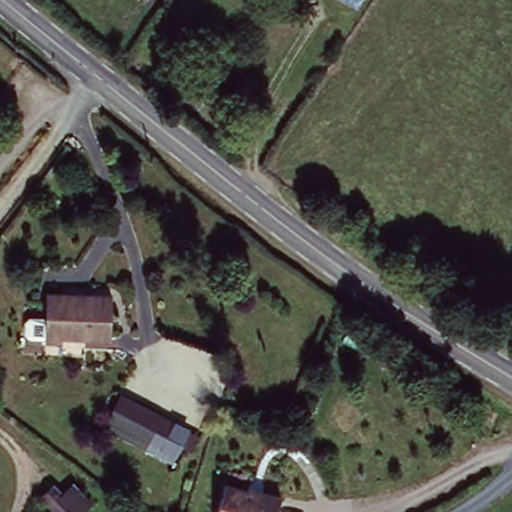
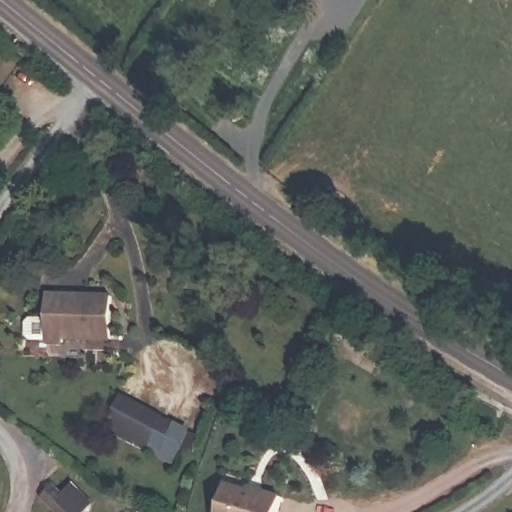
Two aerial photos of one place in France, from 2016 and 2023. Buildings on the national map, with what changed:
unchanged [(321,84),(314,91),(306,85),(313,76),(321,84)]
unchanged [(115,295),(113,338),(65,336),(65,341),(48,340),(50,293),(115,295)]
unchanged [(165,413),(151,440),(111,419),(125,392),(165,413)]
unchanged [(151,440),(165,413),(181,422),(179,426),(201,436),(192,456),(180,452),(174,464),(105,432),(111,419),(151,440)]
unchanged [(252,486),(253,481),(286,489),(280,512),(220,512),(228,481),(252,486)]
unchanged [(60,499),(70,487),(91,504),(85,512),(53,512),(40,502),(50,490),(60,499)]

